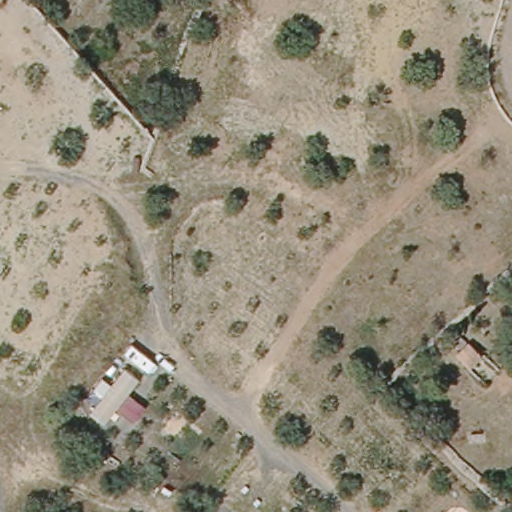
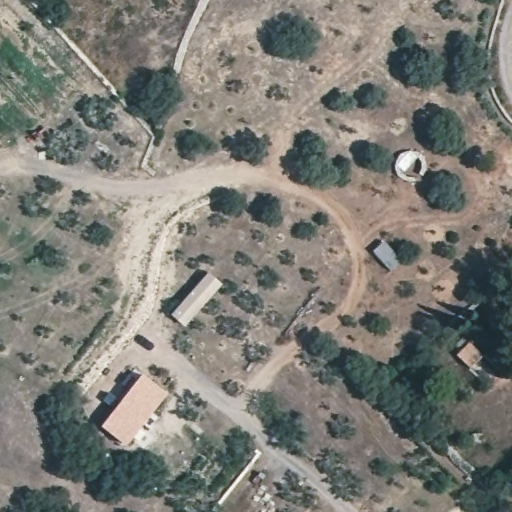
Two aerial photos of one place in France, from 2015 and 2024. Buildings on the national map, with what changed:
unchanged [(482,356),(470,368),(460,357),(472,345),(482,356)]
new [(128,447),(101,427),(142,373),(169,393),(128,447)]

